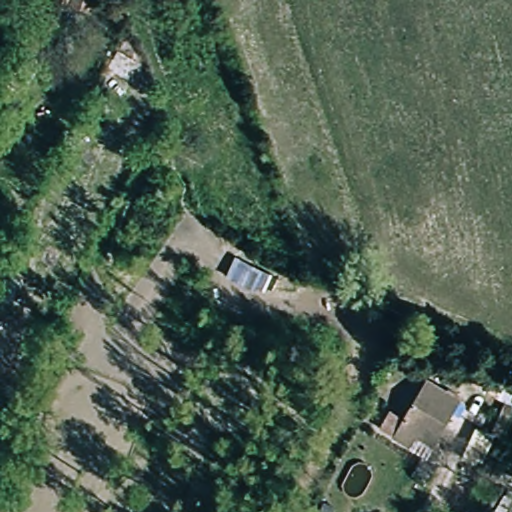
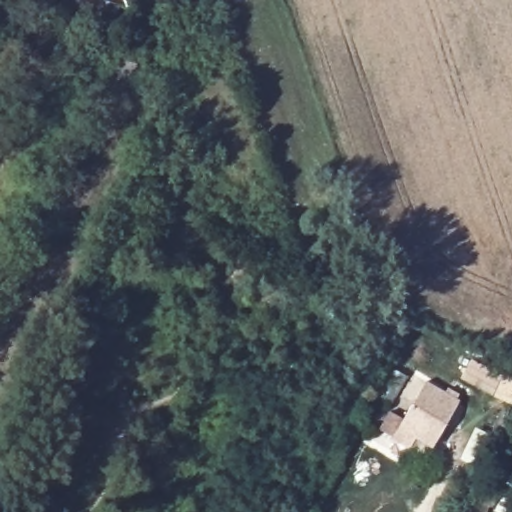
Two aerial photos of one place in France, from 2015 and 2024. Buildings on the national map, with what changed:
unchanged [(53,0),(95,0),(90,12),(53,0)]
unchanged [(170,0),(184,0),(172,5),(170,0)]
unchanged [(38,30),(57,39),(44,64),(26,55),(38,30)]
unchanged [(120,52),(137,65),(127,80),(108,67),(120,52)]
unchanged [(463,378),(471,360),(512,378),(512,403),(463,378)]
unchanged [(458,405),(432,451),(415,441),(409,452),(392,443),(426,386),(458,405)]
unchanged [(477,476),(500,483),(485,510),(484,512),(458,512),(460,510),(477,476)]

